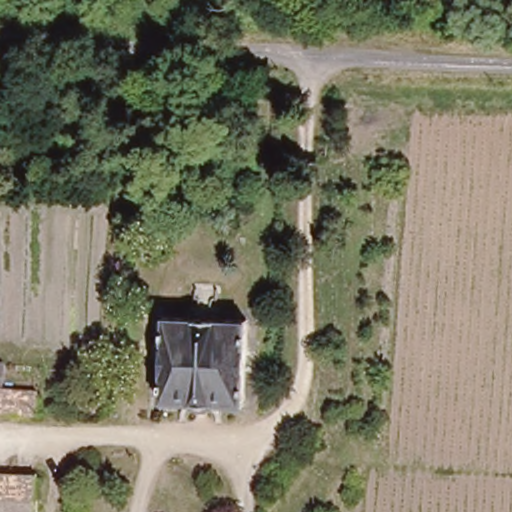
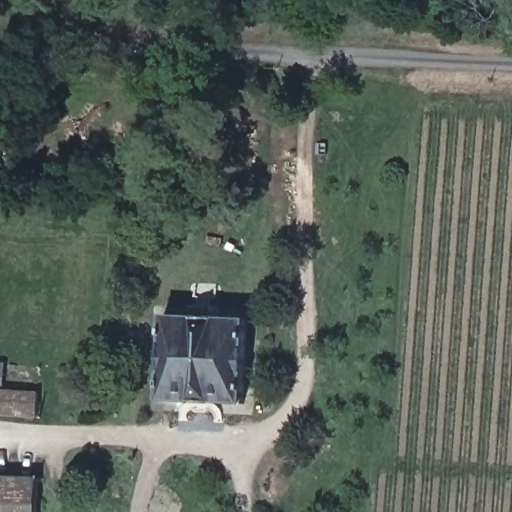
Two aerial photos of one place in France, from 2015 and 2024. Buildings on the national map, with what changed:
unchanged [(161,317),(244,320),(240,404),(158,401),(161,317)]
unchanged [(36,415),(0,413),(0,393),(36,395),(36,415)]
unchanged [(34,512),(0,512),(0,478),(35,480),(34,512)]

